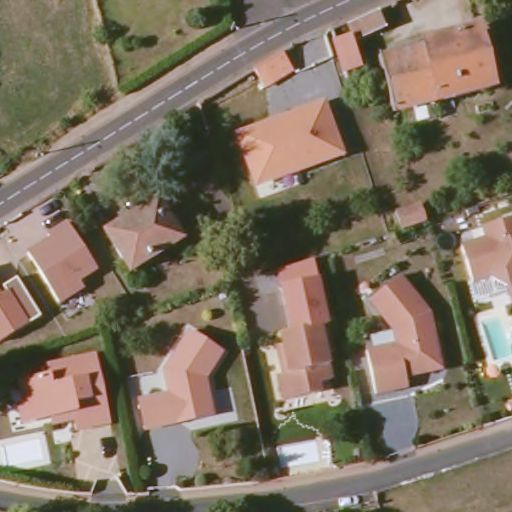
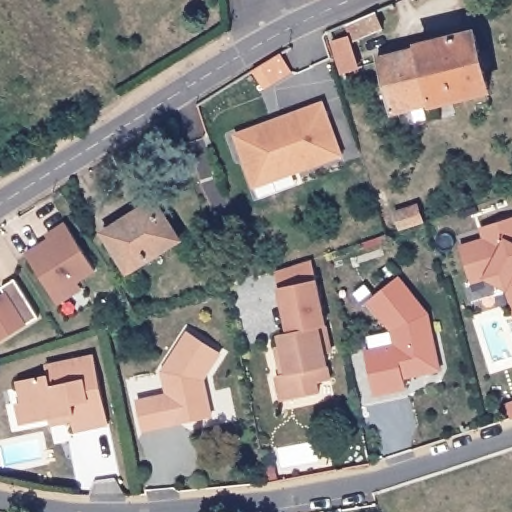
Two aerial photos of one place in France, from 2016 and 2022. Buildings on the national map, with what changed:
unchanged [(350,26),(377,15),(384,31),(357,43),(350,26)]
unchanged [(395,114),(385,79),(380,57),(476,31),(491,88),(395,114)]
unchanged [(344,75),(335,43),(350,39),(359,70),(344,75)]
unchanged [(254,71),(282,54),(293,72),(265,90),(254,71)]
unchanged [(362,86),(360,80),(367,79),(368,84),(362,86)]
unchanged [(343,158),(298,174),(292,172),(254,185),(237,137),(273,124),(275,129),(283,126),(282,121),(324,106),(343,158)]
unchanged [(126,266),(104,232),(123,220),(121,217),(147,200),(157,215),(161,213),(175,235),(126,266)]
unchanged [(402,230),(397,212),(419,205),(425,222),(402,230)]
unchanged [(489,239),(490,237),(487,227),(512,219),(512,287),(492,277),(477,282),(466,247),(489,239)]
unchanged [(27,255),(50,240),(47,235),(67,222),(98,273),(81,284),(84,290),(60,305),(27,255)]
unchanged [(447,370),(409,379),(410,389),(380,395),(371,351),(402,345),(400,329),(376,301),(405,278),(435,315),(439,334),(433,336),(434,341),(442,346),(447,370)]
unchanged [(0,295),(7,293),(3,288),(16,280),(39,317),(0,340),(0,295)]
unchanged [(285,374),(287,374),(284,358),(282,345),(288,343),(287,335),(295,333),(287,288),(322,280),(338,352),(332,354),(337,379),(325,382),(326,391),(298,398),(290,399),(285,374)]
unchanged [(205,389),(207,388),(213,414),(147,430),(140,400),(170,393),(165,369),(189,330),(220,349),(202,378),(205,389)]
unchanged [(22,405),(27,403),(23,380),(52,374),(50,365),(97,355),(112,422),(78,430),(76,419),(63,423),(62,417),(43,422),(27,426),(22,405)]

